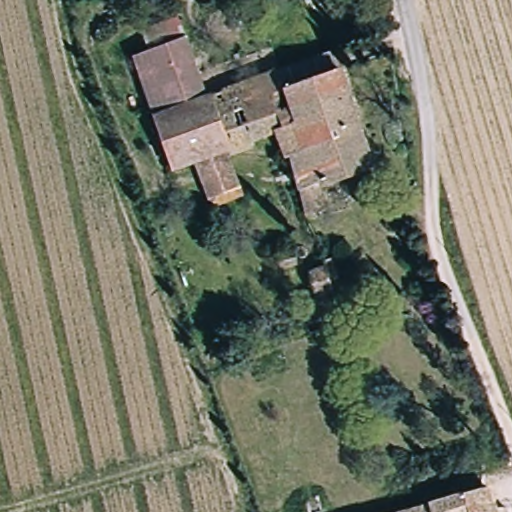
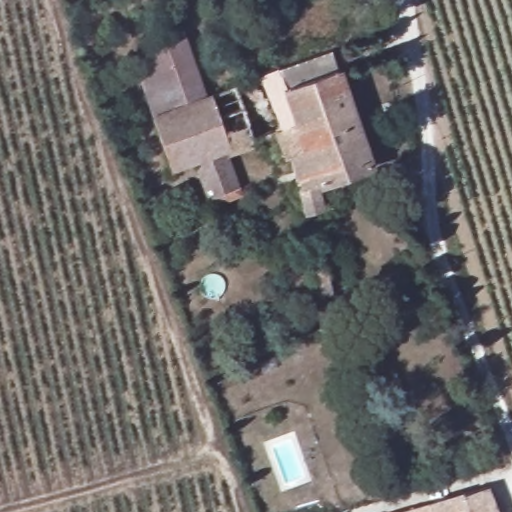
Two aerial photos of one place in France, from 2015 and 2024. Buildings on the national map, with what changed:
unchanged [(137,56),(131,36),(181,17),(188,37),(137,56)]
unchanged [(210,97),(156,118),(134,57),(137,56),(188,37),(209,93),(210,97)]
unchanged [(308,192),(294,156),(287,159),(276,132),(225,151),(210,97),(209,93),(281,67),(332,48),(377,167),(329,185),(336,211),(316,217),(308,192)]
unchanged [(210,97),(225,151),(195,162),(181,166),(174,169),(156,118),(210,97)]
unchanged [(210,201),(206,192),(195,162),(225,151),(236,181),(240,192),(210,201)]
unchanged [(316,301),(306,273),(324,268),(332,298),(316,301)]
unchanged [(469,512),(469,511),(465,512),(364,512),(494,478),(505,512),(469,512)]

